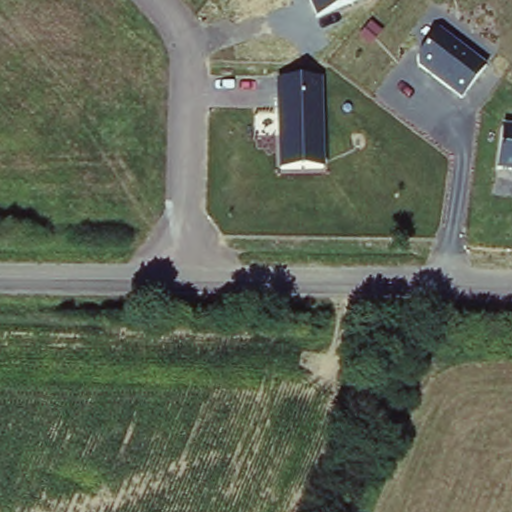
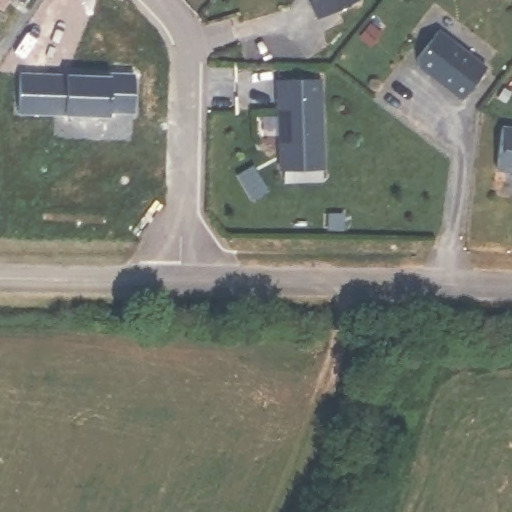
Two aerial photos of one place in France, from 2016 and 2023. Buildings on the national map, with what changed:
new [(19,0),(24,0),(22,2),(19,0)]
unchanged [(307,0),(356,0),(315,17),(307,0)]
unchanged [(461,100),(419,67),(420,52),(438,30),(486,66),(461,100)]
new [(20,72),(109,75),(110,72),(134,73),(133,110),(108,110),(108,114),(19,111),(20,72)]
unchanged [(281,170),(277,80),(323,77),(327,169),(281,170)]
unchanged [(502,127),(512,128),(512,171),(497,169),(502,127)]

